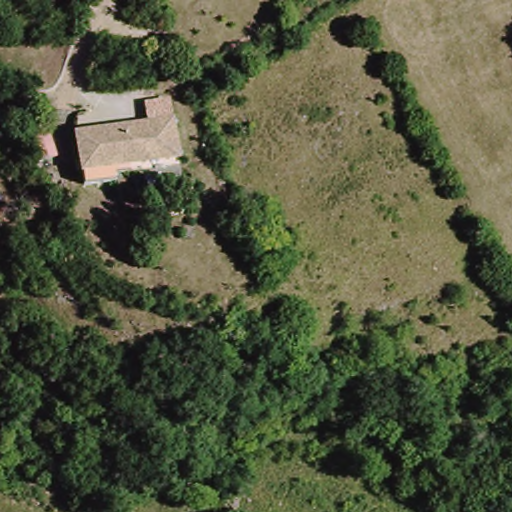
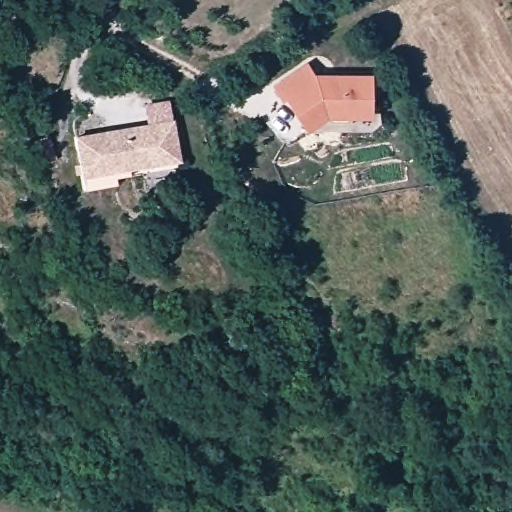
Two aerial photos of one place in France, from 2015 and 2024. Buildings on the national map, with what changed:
new [(308,61),(318,72),(372,73),(372,108),(329,108),(306,123),(288,96),(282,100),(273,85),(308,61)]
unchanged [(74,135),(178,121),(185,169),(118,180),(118,186),(81,188),(74,135)]

